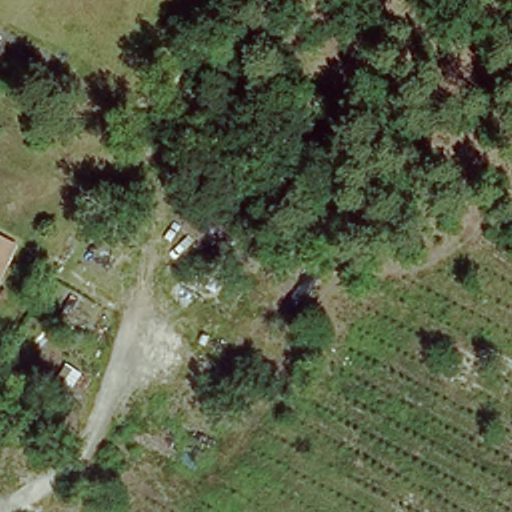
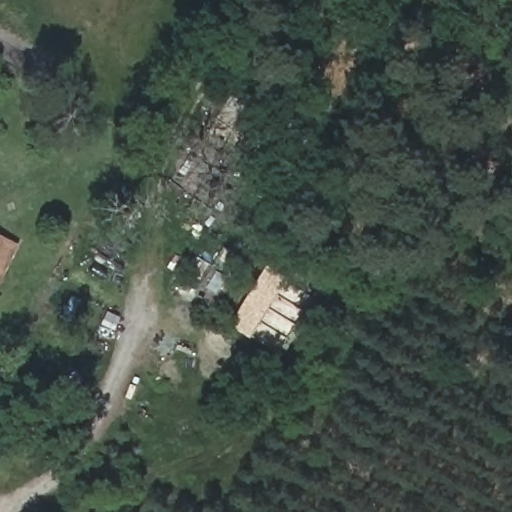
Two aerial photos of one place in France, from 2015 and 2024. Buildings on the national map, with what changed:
unchanged [(16,241),(0,274),(0,233),(16,241)]
new [(247,337),(228,325),(263,269),(283,281),(247,337)]

